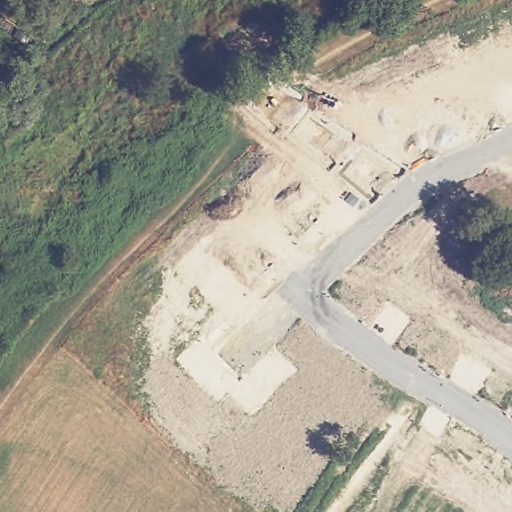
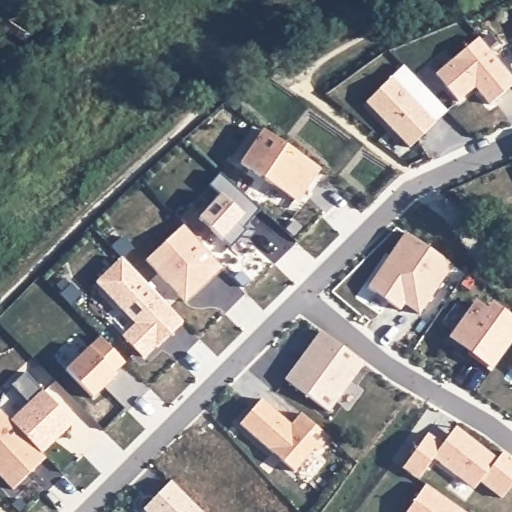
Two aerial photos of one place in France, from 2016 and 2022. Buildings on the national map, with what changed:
new [(512,75),(512,85),(490,104),(475,86),(458,100),(436,74),(479,37),(512,75)]
new [(404,66),(448,111),(410,147),(367,102),(404,66)]
new [(260,128),(320,168),(296,201),(240,161),(260,128)]
new [(219,195),(208,185),(220,172),(261,209),(244,228),(247,230),(231,248),(198,219),(219,195)]
new [(184,224),(222,266),(185,301),(146,259),(184,224)]
new [(405,232),(452,265),(419,314),(404,303),(400,310),(367,287),(405,232)]
new [(121,257),(182,320),(157,345),(156,344),(143,356),(123,335),(135,323),(96,282),(121,257)]
new [(485,309),(490,302),(512,318),(512,335),(489,367),(475,357),(476,354),(449,334),(473,300),(485,309)]
new [(300,358),(320,330),(364,362),(329,410),(285,379),(296,363),(300,358)]
new [(100,337),(125,362),(114,373),(116,375),(93,398),(66,370),(100,337)]
new [(29,404),(11,385),(25,372),(73,422),(41,452),(11,421),(29,404)]
new [(287,421),(291,425),(301,413),(329,437),(317,451),(314,448),(294,471),(239,424),(261,399),(287,421)]
new [(11,421),(41,452),(46,457),(13,489),(0,476),(0,409),(11,421)]
new [(442,444),(444,442),(455,427),(469,438),(497,459),(503,451),(512,458),(512,485),(501,498),(480,481),(476,486),(458,473),(456,475),(433,457),(421,474),(418,478),(402,468),(406,463),(427,434),(442,444)]
new [(171,480),(203,512),(146,512),(143,509),(171,480)]
new [(466,512),(406,512),(426,484),(466,512)]

